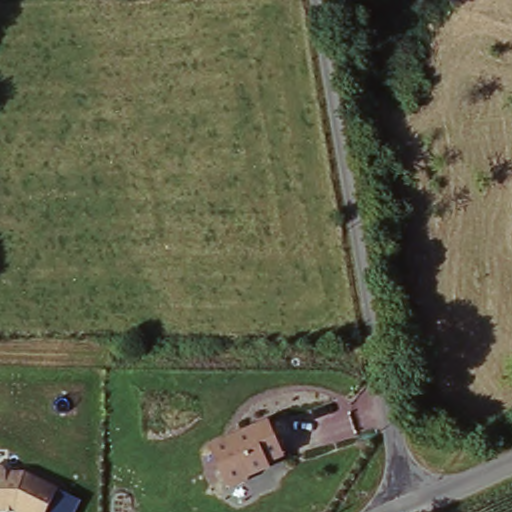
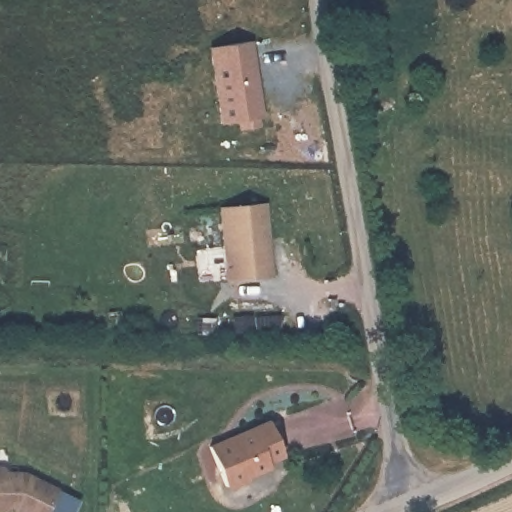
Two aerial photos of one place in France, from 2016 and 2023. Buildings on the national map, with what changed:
new [(263,118),(222,126),(210,49),(252,41),(263,118)]
new [(276,277),(229,283),(220,207),(268,203),(276,277)]
unchanged [(289,458),(227,488),(210,450),(271,424),(289,458)]
unchanged [(47,512),(0,512),(0,468),(6,468),(9,472),(26,472),(58,491),(47,512)]

